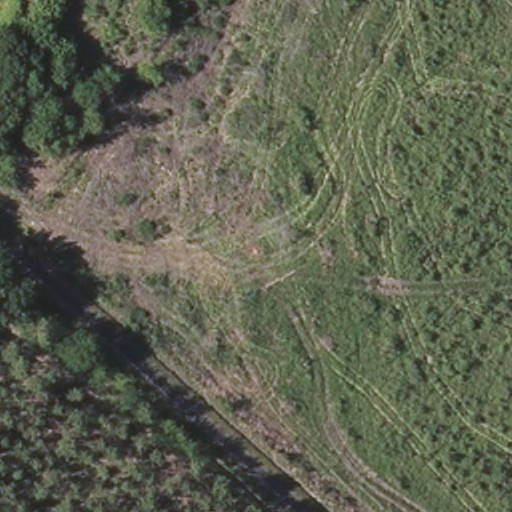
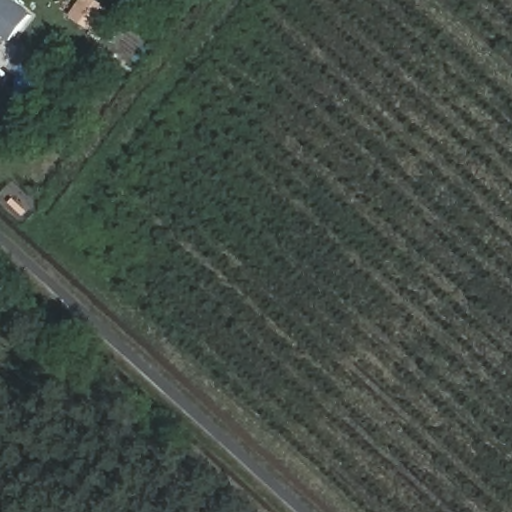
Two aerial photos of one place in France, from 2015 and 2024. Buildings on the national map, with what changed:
new [(11,0),(30,14),(11,41),(0,33),(0,0),(11,0)]

